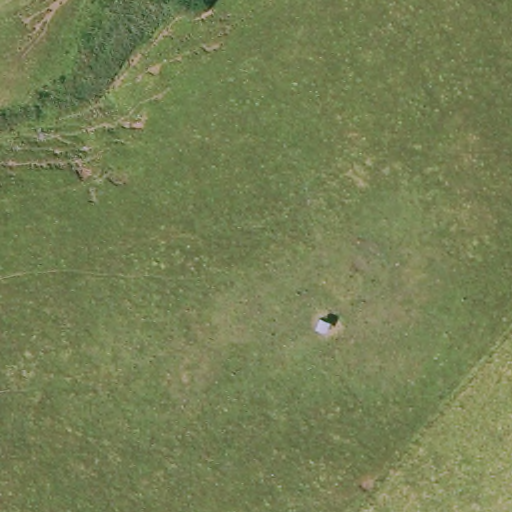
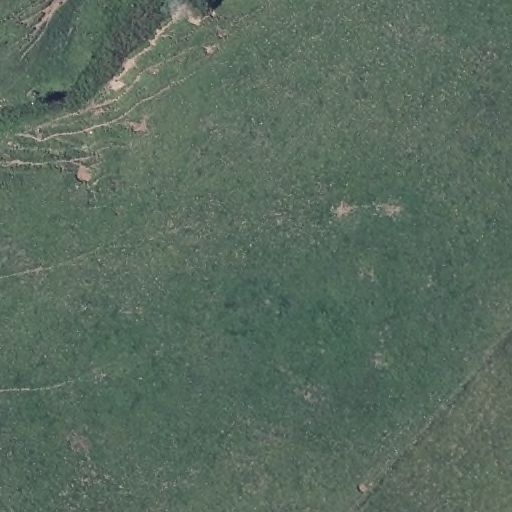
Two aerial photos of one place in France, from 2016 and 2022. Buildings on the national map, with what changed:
[]

